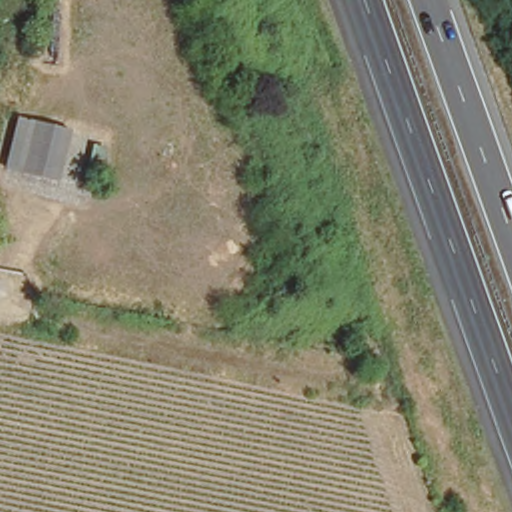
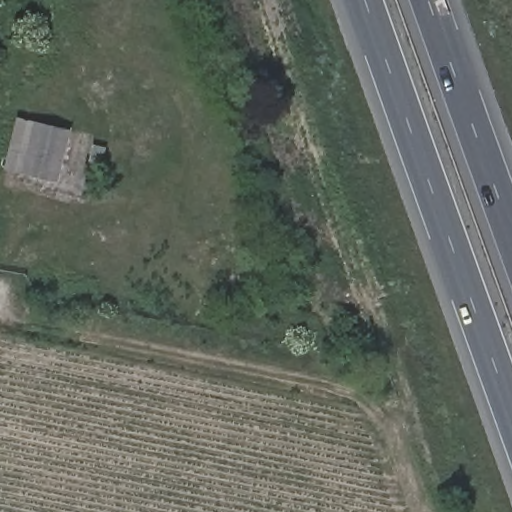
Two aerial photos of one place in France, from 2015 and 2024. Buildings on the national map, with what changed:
unchanged [(4,165),(16,112),(72,125),(58,178),(4,165)]

